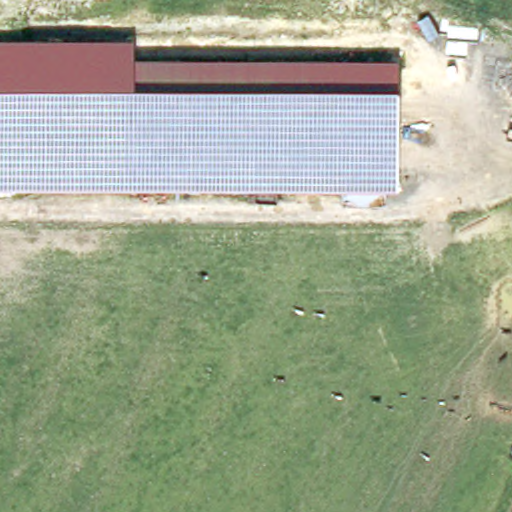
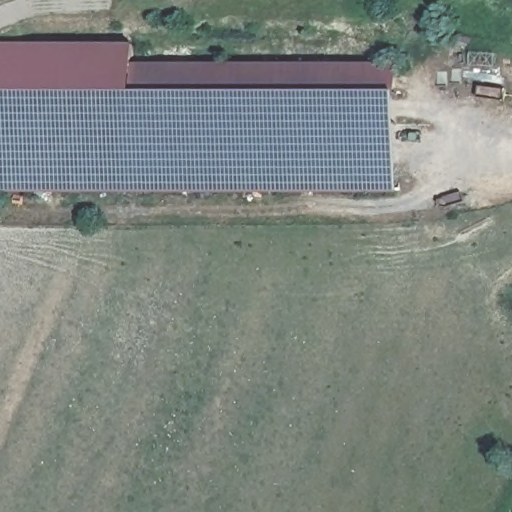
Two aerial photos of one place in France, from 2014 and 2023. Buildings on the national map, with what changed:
unchanged [(135,43),(134,60),(399,62),(398,192),(0,192),(0,42),(135,43)]

